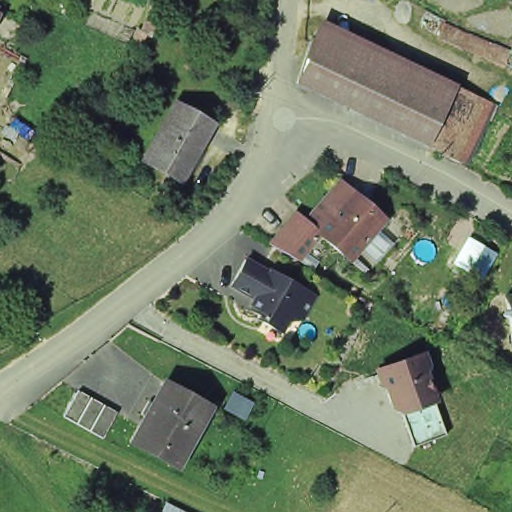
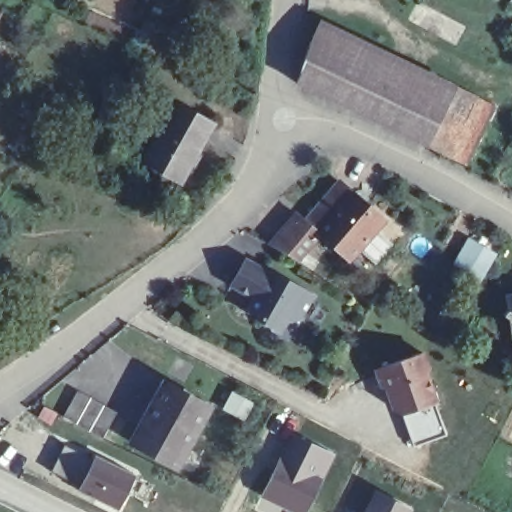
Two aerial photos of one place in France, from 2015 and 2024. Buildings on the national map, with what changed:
unchanged [(0,18),(0,13),(2,14),(0,18)]
unchanged [(317,20),(458,86),(495,106),(462,170),(432,155),(296,88),(317,20)]
unchanged [(211,125),(177,182),(140,160),(174,102),(211,125)]
unchanged [(345,185),(389,223),(352,266),(320,239),(308,227),(311,224),(345,185)]
unchanged [(308,227),(320,239),(303,262),(276,247),(301,216),(311,224),(308,227)]
unchanged [(281,326),(264,316),(263,318),(256,315),(257,312),(248,307),(254,296),(230,282),(244,257),(268,271),(270,268),(314,293),(300,317),(289,312),(281,326)]
unchanged [(512,298),(512,301),(510,300),(512,298)]
unchanged [(417,406),(406,410),(400,407),(392,387),(386,383),(389,377),(385,365),(427,350),(432,365),(430,371),(437,394),(438,399),(417,406)]
unchanged [(163,386),(208,412),(191,443),(144,419),(163,386)]
unchanged [(71,420),(60,413),(67,401),(73,388),(85,395),(98,402),(112,409),(105,421),(98,434),(85,427),(71,420)]
unchanged [(131,443),(133,440),(144,419),(191,443),(180,463),(175,472),(131,443)]
new [(336,456),(309,512),(283,512),(259,501),(291,434),(336,456)]
new [(135,480),(117,512),(77,492),(79,487),(50,472),(65,446),(135,480)]
new [(411,508),(410,512),(364,512),(375,492),(411,508)]

